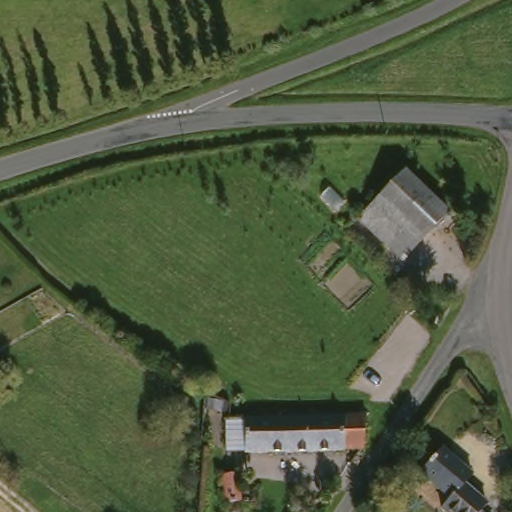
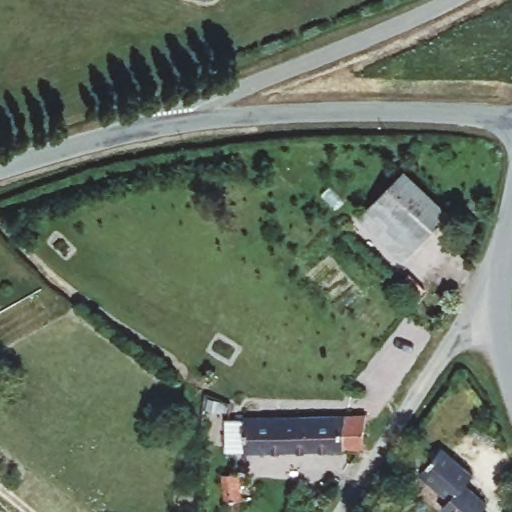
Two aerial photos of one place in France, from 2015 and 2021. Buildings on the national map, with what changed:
unchanged [(362,222),(404,178),(448,217),(403,261),(362,222)]
unchanged [(229,421),(244,421),(362,419),(359,450),(245,451),(228,452),(229,421)]
unchanged [(488,502),(481,512),(439,512),(437,510),(447,495),(401,461),(410,444),(429,455),(438,444),(473,472),(464,483),(488,502)]
unchanged [(224,473),(236,472),(238,502),(225,502),(224,473)]

